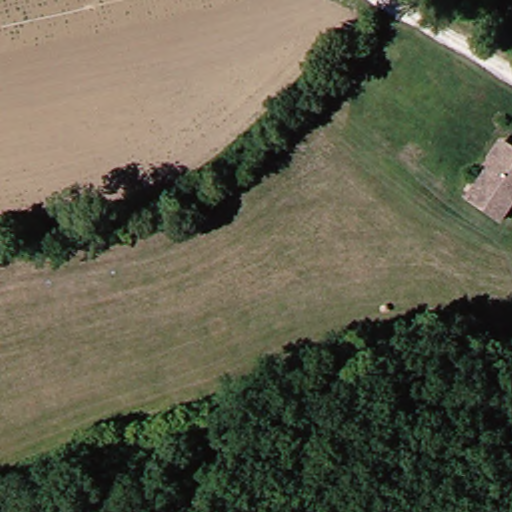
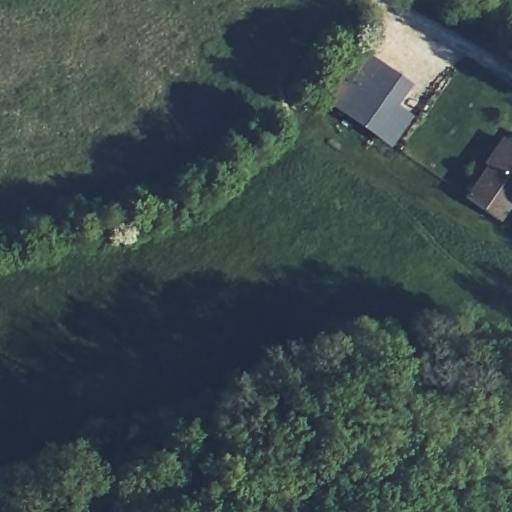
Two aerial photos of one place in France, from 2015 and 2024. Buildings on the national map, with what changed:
new [(362,51),(412,86),(398,106),(414,118),(392,149),(326,103),(362,51)]
unchanged [(463,186),(512,139),(512,196),(493,215),(463,186)]

